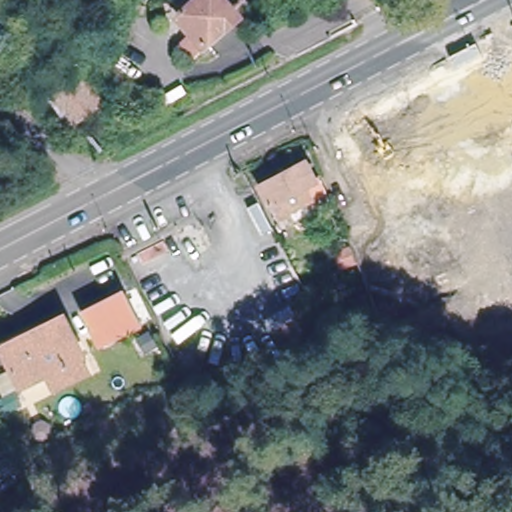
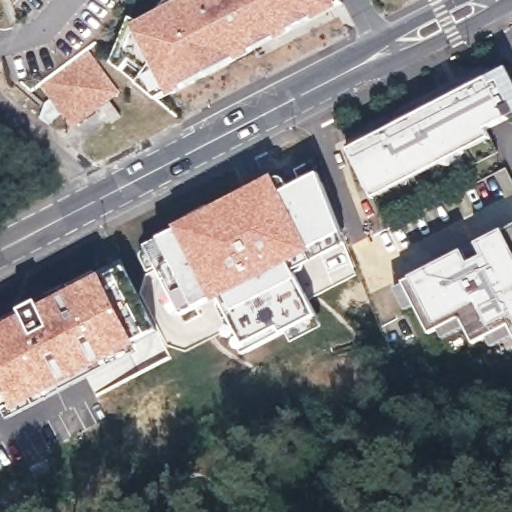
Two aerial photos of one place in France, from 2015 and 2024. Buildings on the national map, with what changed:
new [(180,85),(182,88),(170,96),(167,91),(157,97),(139,82),(146,71),(130,60),(122,69),(113,61),(131,17),(139,21),(176,0),(336,0),(340,8),(180,85)]
demolished [(172,12),(176,8),(172,3),(176,0),(221,0),(232,12),(201,42),(172,12)]
demolished [(512,131),(468,47),(507,26),(512,34),(512,131)]
new [(60,114),(50,125),(38,117),(44,102),(49,99),(40,87),(90,51),(120,92),(110,100),(121,116),(112,124),(100,106),(71,127),(60,114)]
demolished [(101,77),(90,87),(95,95),(61,122),(39,93),(85,56),(101,77)]
new [(505,67),(512,80),(512,114),(484,127),(490,137),(371,199),(346,149),(505,67)]
demolished [(319,179),(310,184),(317,200),(277,219),(258,181),(308,157),(319,179)]
new [(343,232),(287,257),(322,325),(299,336),(295,329),(243,353),(216,301),(182,315),(145,246),(237,197),(245,211),(320,173),(343,232)]
new [(490,337),(476,343),(468,327),(445,338),(440,330),(432,334),(417,306),(408,311),(396,288),(406,283),(405,281),(465,250),(472,262),(486,255),(480,242),(512,225),(512,338),(495,347),(490,337)]
new [(103,281),(126,267),(160,332),(135,346),(139,352),(8,416),(0,400),(0,319),(97,273),(103,281)]
demolished [(99,346),(84,315),(122,297),(136,330),(99,346)]
demolished [(51,394),(44,378),(20,389),(0,350),(0,347),(67,317),(85,359),(92,375),(51,394)]

